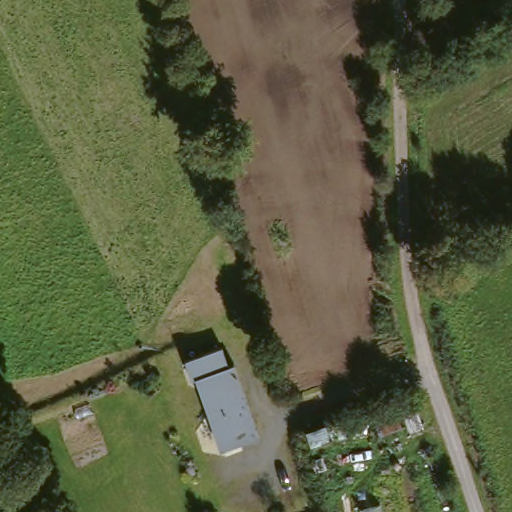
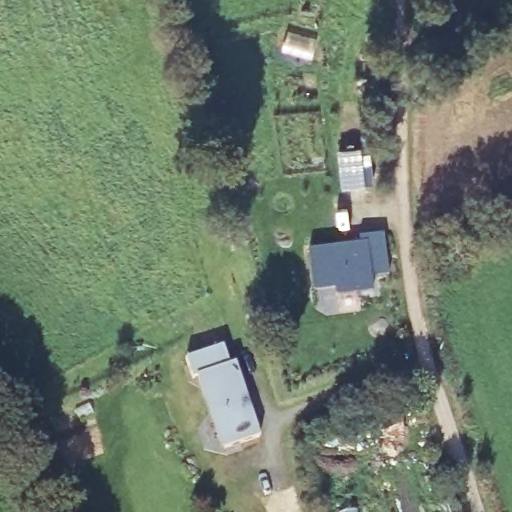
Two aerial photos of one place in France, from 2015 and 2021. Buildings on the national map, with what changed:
new [(383,233),(389,273),(371,275),(373,290),(336,295),(334,289),(316,291),(309,250),(361,243),(359,237),(383,233)]
unchanged [(256,447),(219,456),(200,382),(191,384),(186,364),(226,354),(231,374),(236,372),(256,447)]
unchanged [(390,411),(401,434),(379,444),(368,420),(390,411)]
unchanged [(346,439),(306,451),(301,434),(340,421),(346,439)]

